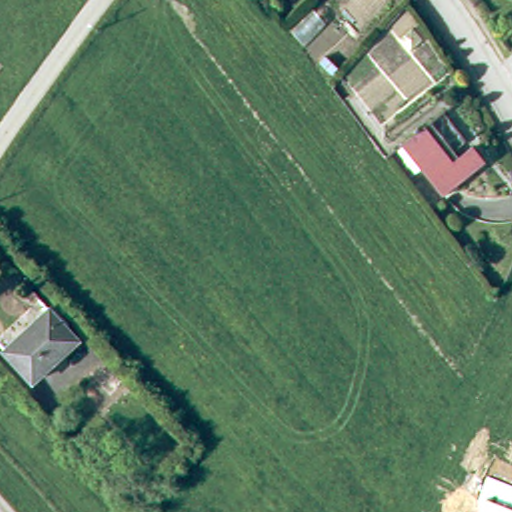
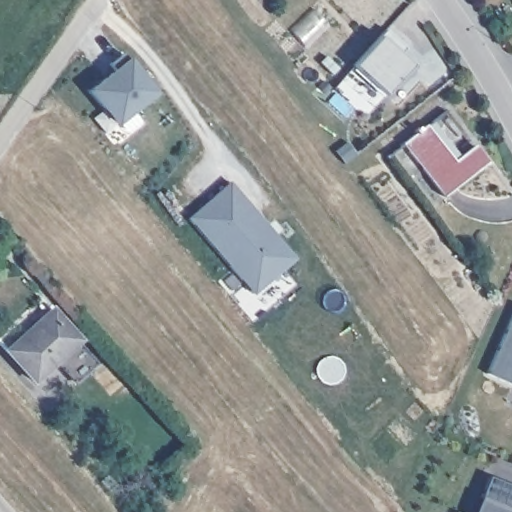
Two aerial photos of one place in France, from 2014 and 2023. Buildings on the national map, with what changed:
new [(405,47),(400,53),(412,64),(385,94),(354,65),(379,37),(385,31),(405,47)]
new [(117,126),(89,91),(128,58),(157,94),(117,126)]
unchanged [(434,125),(461,162),(480,149),(492,165),(450,197),(409,144),(434,125)]
new [(297,259),(254,294),(189,219),(230,182),(297,259)]
unchanged [(12,260),(0,268),(0,241),(12,260)]
unchanged [(54,306),(81,337),(37,377),(10,346),(54,306)]
new [(512,313),(512,384),(487,373),(512,313)]
unchanged [(512,512),(476,512),(482,498),(512,509),(512,512)]

